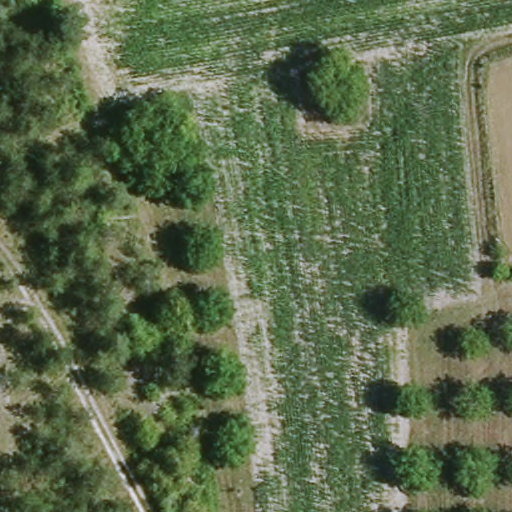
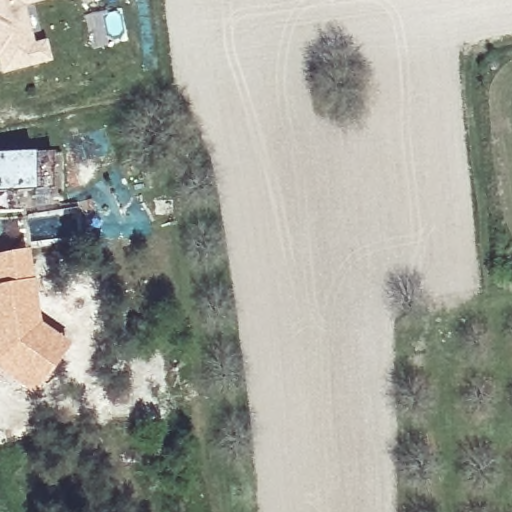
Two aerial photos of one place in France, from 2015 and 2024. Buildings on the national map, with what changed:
new [(44,57),(0,70),(0,0),(28,0),(44,57)]
new [(49,190),(29,191),(0,192),(0,155),(29,155),(49,156),(49,190)]
new [(25,250),(30,280),(0,285),(0,253),(25,250)]
new [(30,280),(38,322),(67,347),(33,393),(0,369),(0,285),(30,280)]

